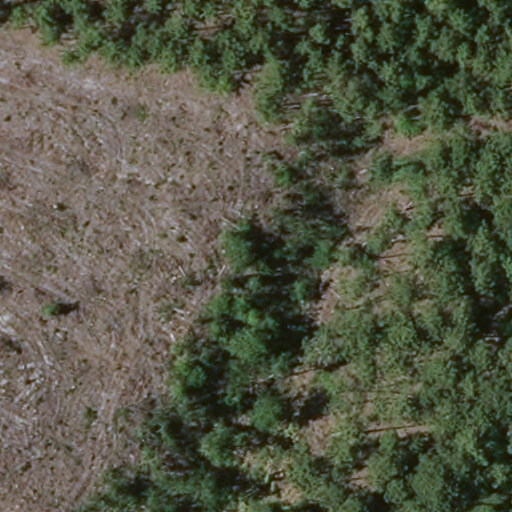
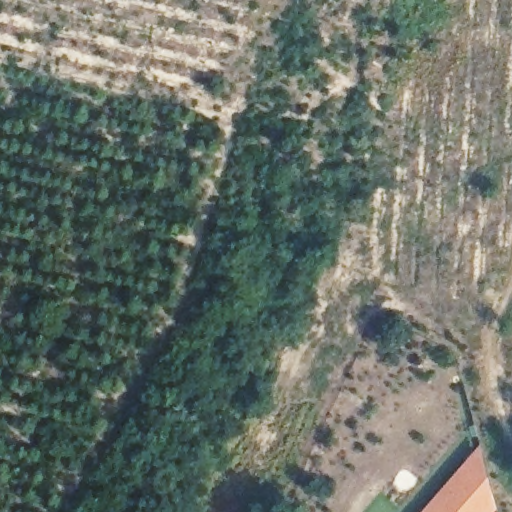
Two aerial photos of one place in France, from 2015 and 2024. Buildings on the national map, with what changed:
new [(500,507),(496,512),(423,512),(482,446),(500,507)]

